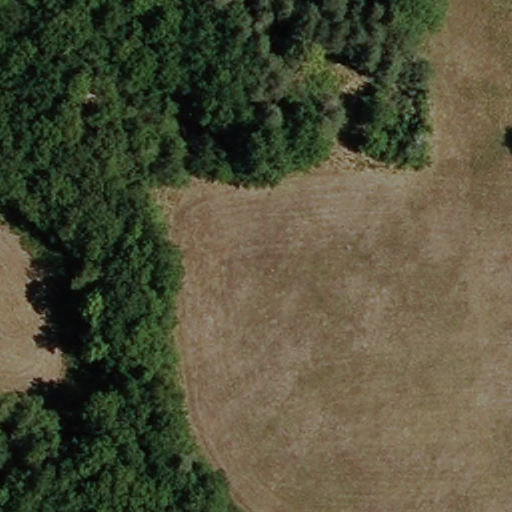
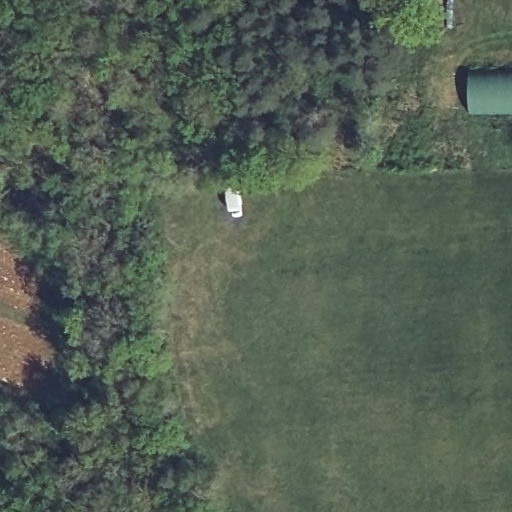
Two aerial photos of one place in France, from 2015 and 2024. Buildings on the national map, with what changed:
new [(512,71),(512,113),(471,113),(471,72),(512,71)]

